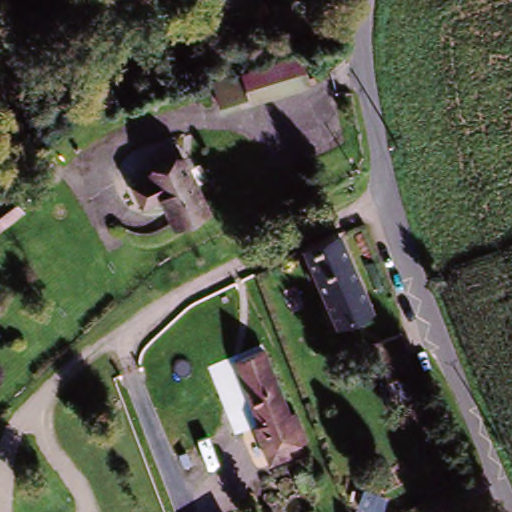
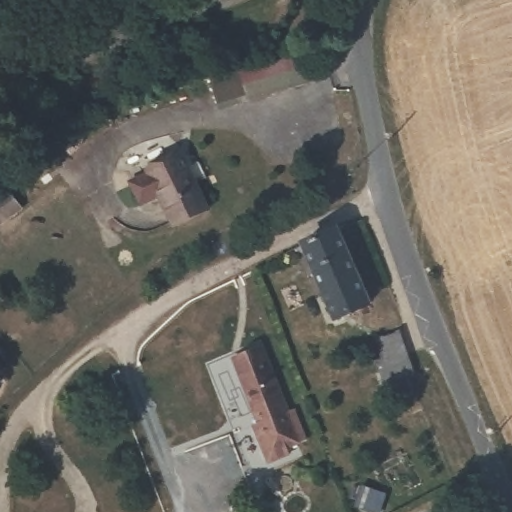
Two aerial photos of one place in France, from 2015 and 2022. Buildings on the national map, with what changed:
unchanged [(250,100),(249,94),(219,103),(211,78),(300,51),(309,82),(250,100)]
unchanged [(207,212),(173,229),(159,200),(140,208),(130,186),(182,160),(207,212)]
unchanged [(0,197),(9,190),(21,206),(0,222),(0,197)]
unchanged [(337,229),(370,303),(335,318),(303,244),(337,229)]
unchanged [(367,347),(395,331),(417,377),(385,392),(367,347)]
unchanged [(305,440),(300,442),(285,448),(288,454),(279,458),(269,462),(253,426),(259,424),(232,360),(259,348),(287,412),(292,410),(305,440)]

